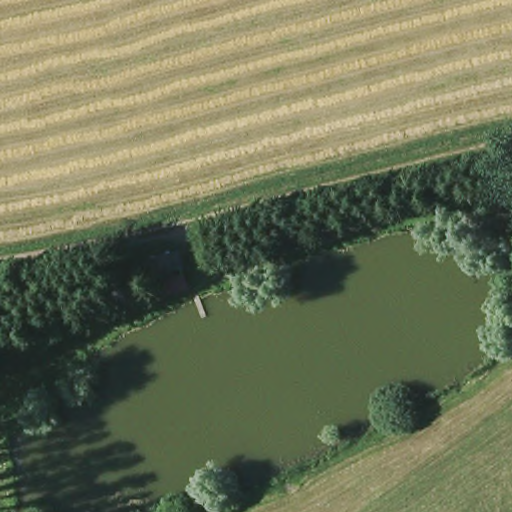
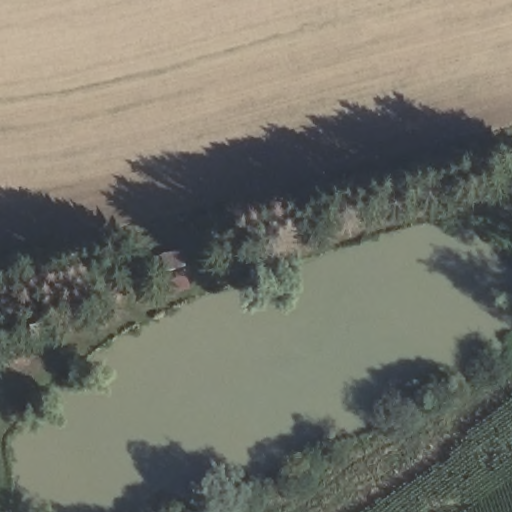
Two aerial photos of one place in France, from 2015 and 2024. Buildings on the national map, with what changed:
unchanged [(149,288),(138,262),(181,246),(187,271),(149,288)]

